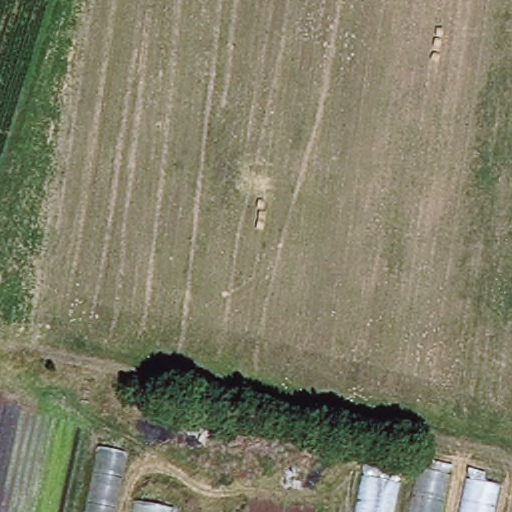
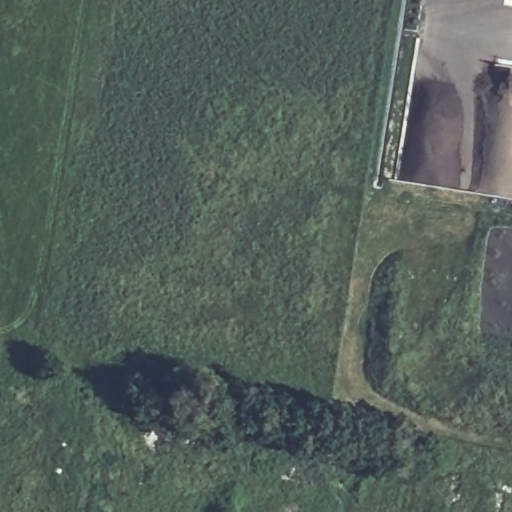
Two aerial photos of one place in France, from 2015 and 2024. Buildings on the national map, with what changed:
demolished [(133,450),(124,494),(184,508),(184,512),(90,512),(104,445),(133,450)]
demolished [(417,484),(423,465),(505,484),(500,512),(361,512),(369,475),(417,484)]

